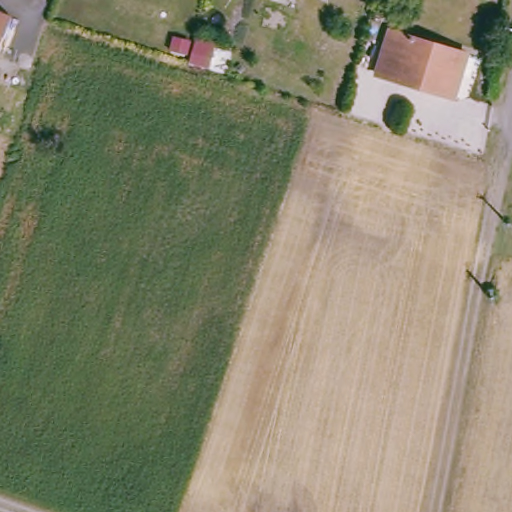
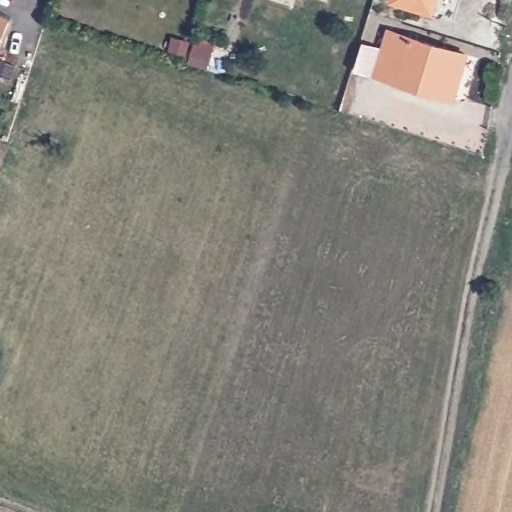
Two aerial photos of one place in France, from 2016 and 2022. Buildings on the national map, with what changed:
new [(390,4),(391,0),(437,0),(432,17),(390,4)]
unchanged [(0,55),(0,13),(15,19),(0,55)]
unchanged [(467,55),(453,100),(403,84),(403,80),(372,70),(385,29),(467,55)]

